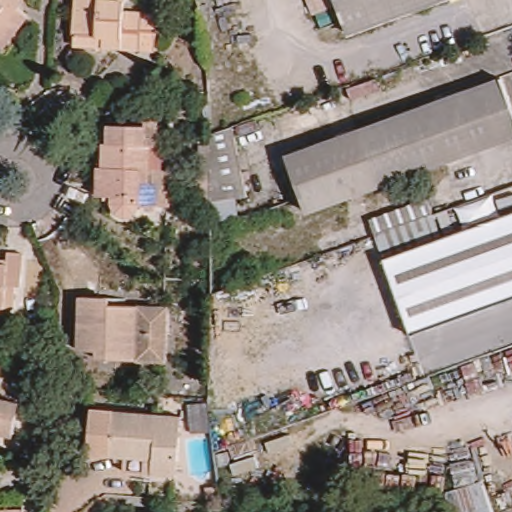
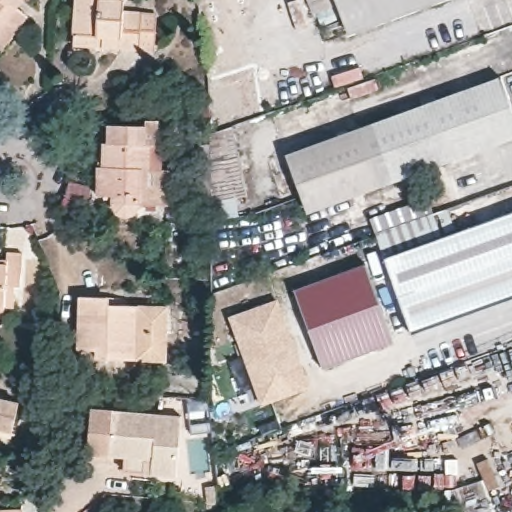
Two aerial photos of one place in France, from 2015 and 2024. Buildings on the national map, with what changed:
unchanged [(0,46),(0,0),(22,0),(17,7),(28,15),(18,30),(2,48),(0,46)]
unchanged [(83,0),(130,0),(129,12),(148,13),(145,49),(108,47),(79,45),(81,34),(83,0)]
unchanged [(352,27),(342,0),(428,0),(352,27)]
unchanged [(314,212),(293,156),(504,80),(512,103),(512,140),(314,212)]
unchanged [(147,197),(146,202),(144,206),(142,209),(139,211),(136,212),(131,212),(127,212),(124,210),(121,207),(120,204),(120,197),(120,191),(116,191),(104,190),(104,162),(110,162),(110,138),(116,137),(117,120),(153,121),(152,139),(155,139),(155,165),(155,198),(147,197)]
new [(239,216),(221,219),(218,202),(206,204),(195,135),(235,128),(246,197),(236,199),(239,216)]
unchanged [(381,256),(373,237),(369,222),(427,202),(431,217),(438,236),(381,256)]
unchanged [(446,212),(452,231),(443,234),(437,216),(446,212)]
unchanged [(512,213),(512,299),(411,336),(382,258),(512,213)]
unchanged [(6,257),(7,249),(24,249),(22,282),(15,282),(14,303),(6,302),(5,312),(0,312),(0,256),(6,257)]
new [(370,263),(398,341),(327,367),(299,289),(370,263)]
unchanged [(111,298),(121,298),(121,306),(134,306),(143,307),(143,324),(142,361),(102,359),(103,352),(85,350),(88,297),(111,298)]
new [(274,298),(308,388),(258,407),(224,317),(274,298)]
unchanged [(19,404),(11,437),(0,435),(0,400),(19,404)]
unchanged [(113,411),(182,420),(174,478),(132,473),(127,471),(125,468),(126,460),(109,457),(87,453),(93,408),(113,411)]
unchanged [(490,512),(442,512),(437,495),(480,481),(490,512)]
unchanged [(29,511),(29,512),(3,512),(29,511)]

